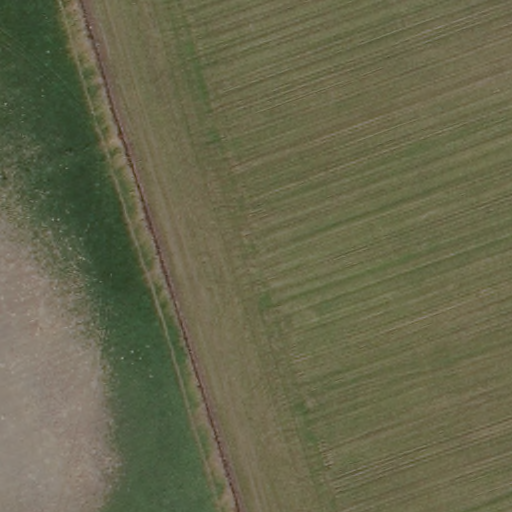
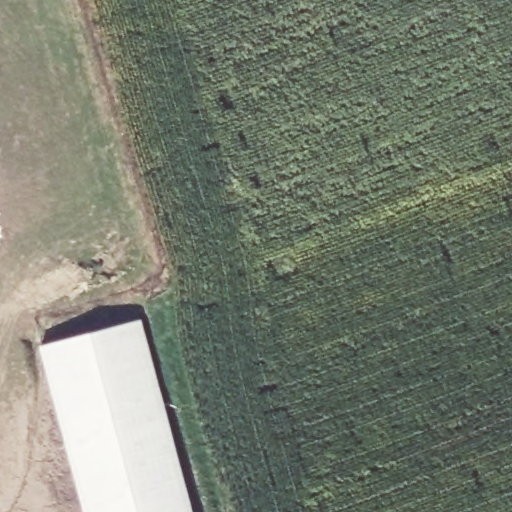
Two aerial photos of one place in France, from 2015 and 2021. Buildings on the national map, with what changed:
new [(139,322),(189,512),(86,512),(43,348),(139,322)]

